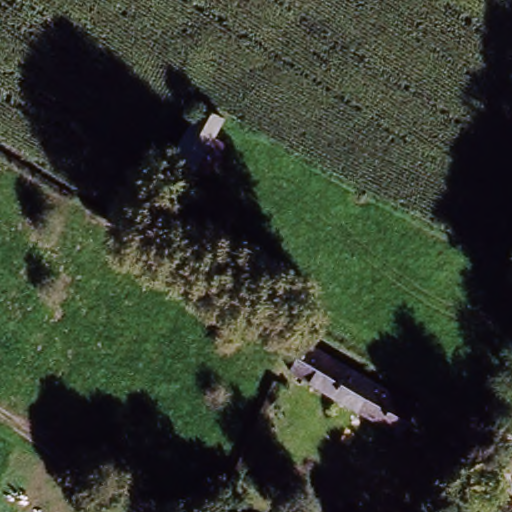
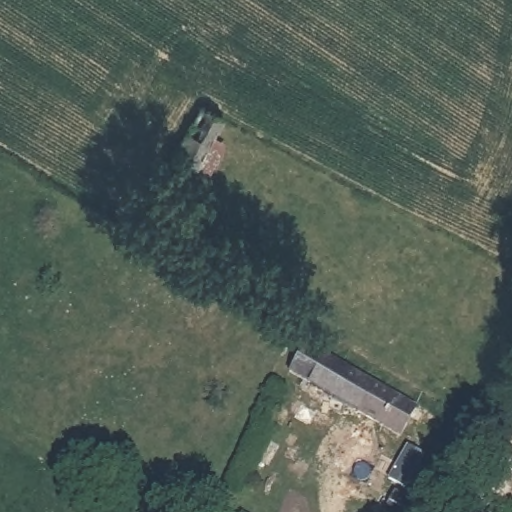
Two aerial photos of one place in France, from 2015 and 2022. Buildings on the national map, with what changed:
unchanged [(197,171),(174,154),(175,152),(203,106),(203,105),(227,124),(213,146),(228,156),(212,181),(197,171)]
unchanged [(405,403),(407,401),(422,409),(402,441),(290,373),(308,343),(320,351),(318,353),(405,403)]

